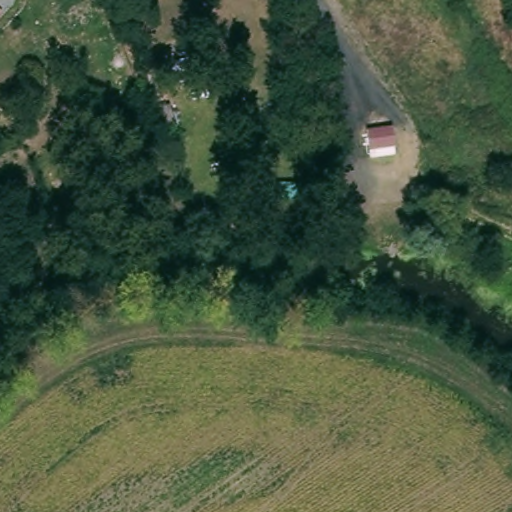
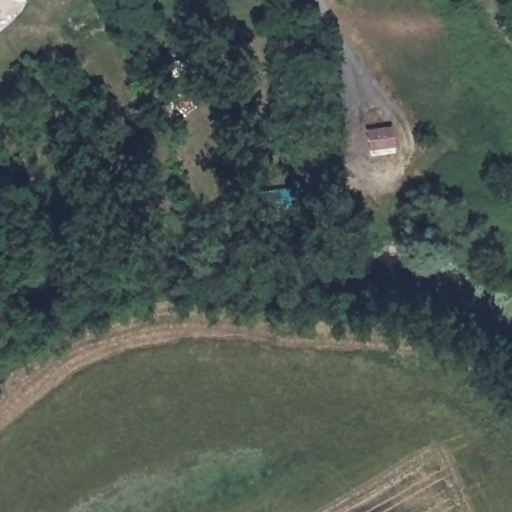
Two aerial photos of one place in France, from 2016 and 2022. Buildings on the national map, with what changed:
unchanged [(400,149),(365,158),(364,137),(394,128),(400,149)]
unchanged [(34,213),(62,199),(65,204),(76,225),(56,238),(34,213)]

